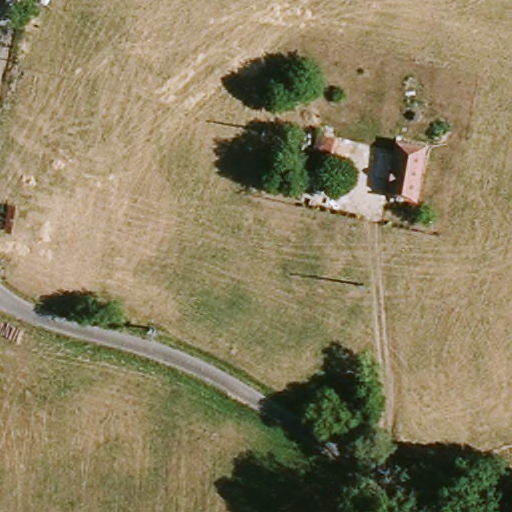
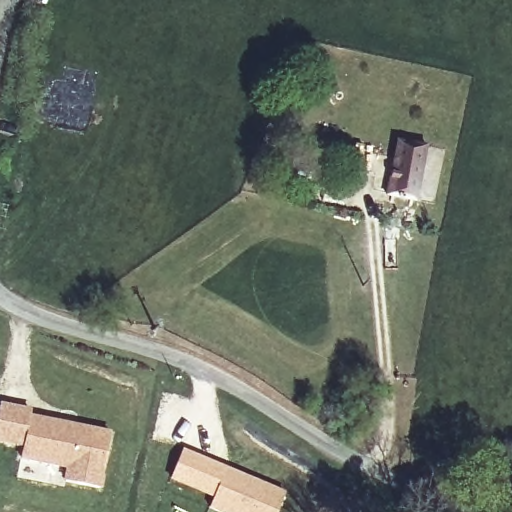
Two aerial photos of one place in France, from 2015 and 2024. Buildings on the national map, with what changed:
unchanged [(335,163),(315,157),(320,128),(340,133),(335,163)]
unchanged [(420,145),(412,194),(387,189),(395,140),(420,145)]
new [(32,412),(32,418),(112,431),(103,487),(70,481),(72,466),(25,459),(27,446),(0,442),(0,416),(2,407),(32,412)]
new [(187,484),(172,478),(182,450),(199,457),(227,467),(287,489),(278,512),(227,512),(212,506),(215,494),(187,484)]

